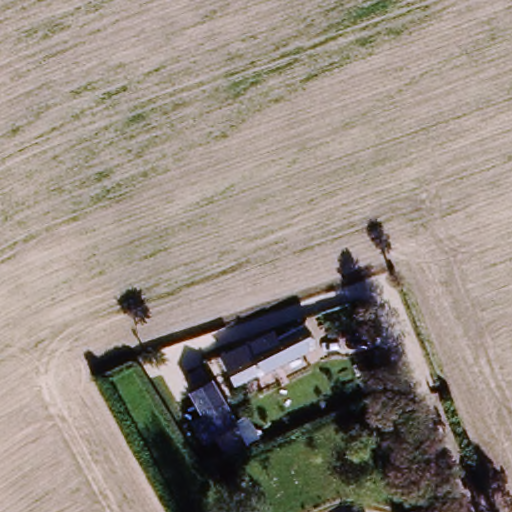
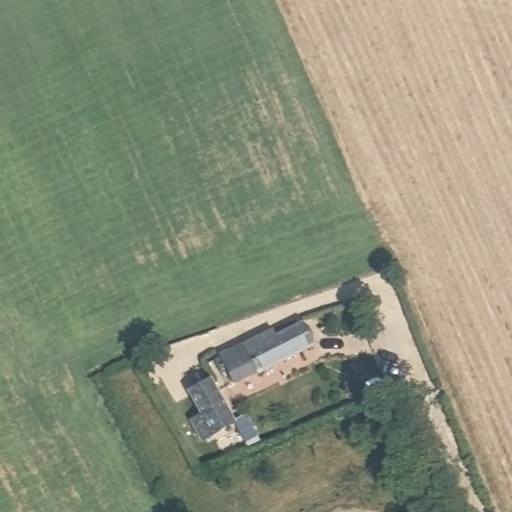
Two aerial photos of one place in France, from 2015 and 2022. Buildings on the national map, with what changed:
unchanged [(255,379),(243,351),(268,340),(271,345),(300,333),(310,356),(255,379)]
unchanged [(205,420),(195,399),(214,392),(223,411),(205,420)]

